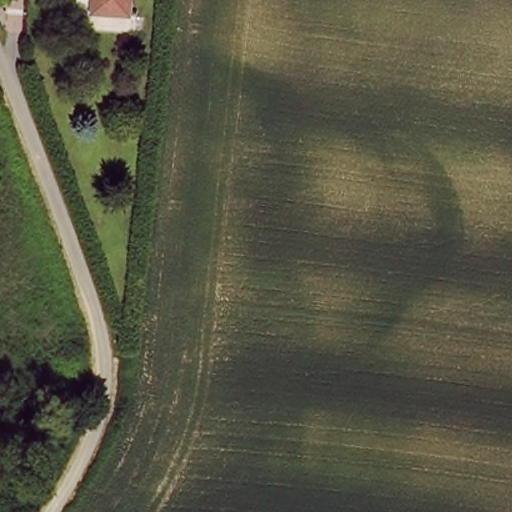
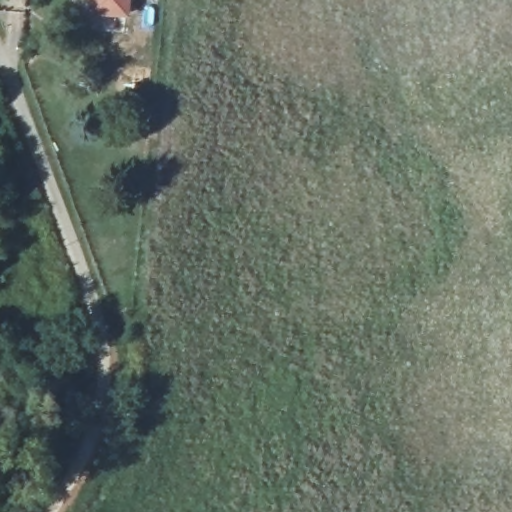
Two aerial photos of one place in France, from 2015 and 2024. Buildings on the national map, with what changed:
unchanged [(134,17),(101,10),(102,0),(136,0),(134,17)]

